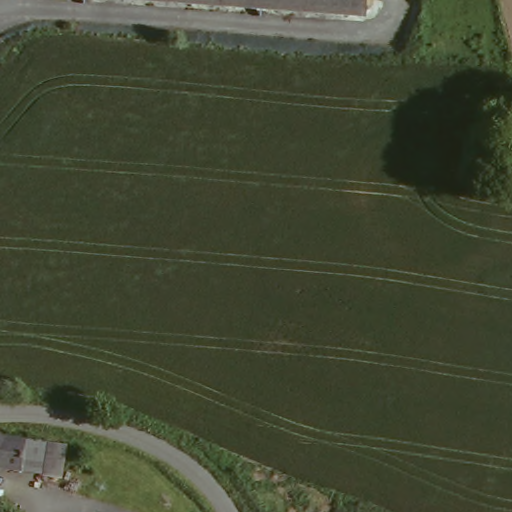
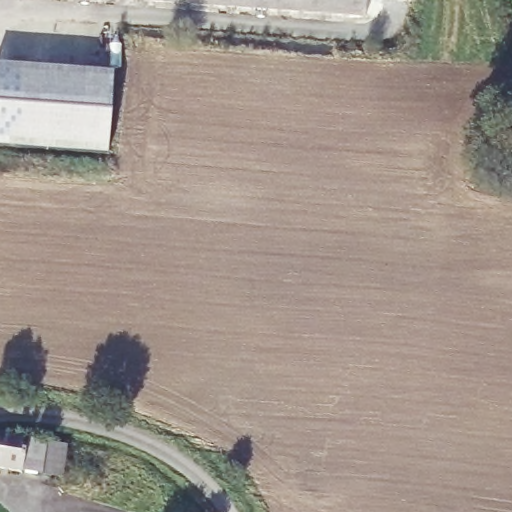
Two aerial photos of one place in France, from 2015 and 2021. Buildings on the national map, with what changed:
unchanged [(362,16),(166,0),(363,0),(362,16)]
new [(107,149),(0,150),(0,67),(114,69),(107,149)]
unchanged [(41,444),(39,470),(0,466),(0,439),(30,442),(41,444)]

